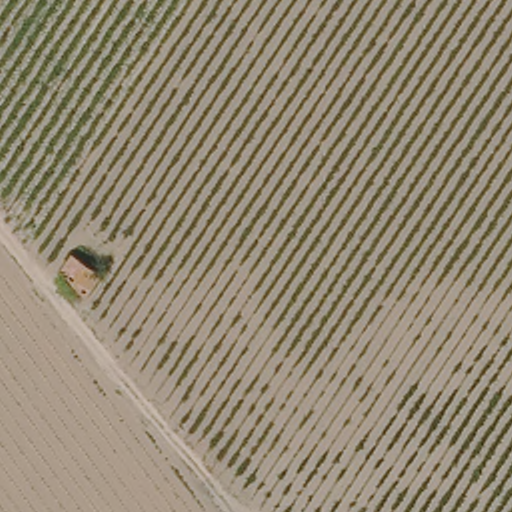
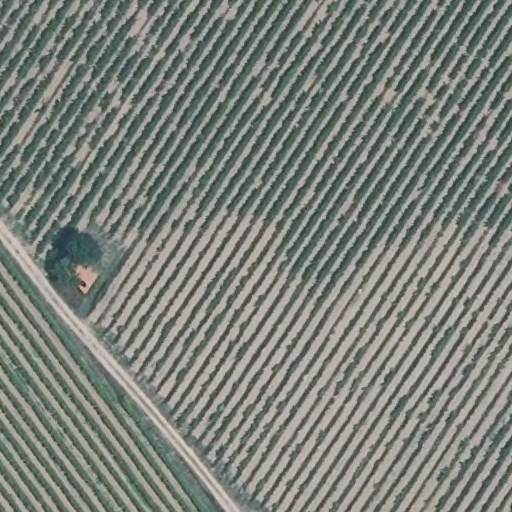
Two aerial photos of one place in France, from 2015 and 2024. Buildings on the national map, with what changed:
unchanged [(86,247),(110,270),(96,291),(74,265),(86,247)]

